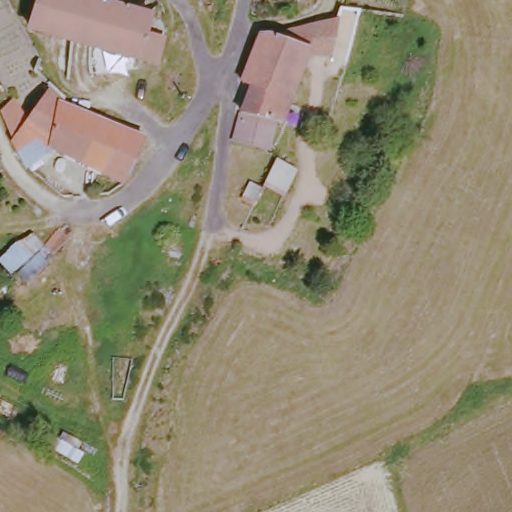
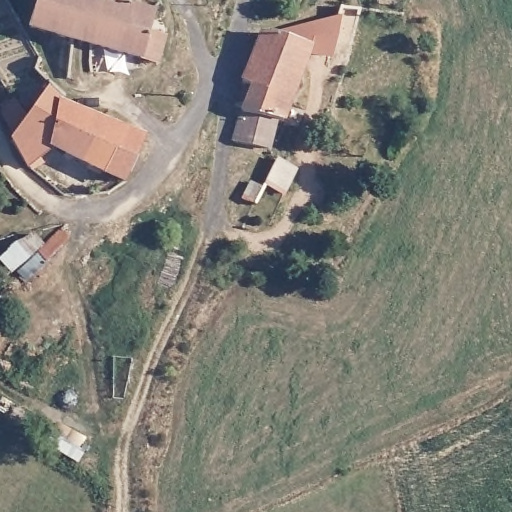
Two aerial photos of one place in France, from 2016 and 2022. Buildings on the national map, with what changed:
unchanged [(152,32),(165,37),(158,64),(150,62),(35,29),(41,0),(115,0),(157,11),(152,32)]
unchanged [(342,26),(334,63),(307,57),(269,45),(342,26)]
unchanged [(269,45),(307,57),(285,131),(277,129),(240,120),(250,92),(245,91),(262,44),(269,45)]
unchanged [(36,179),(16,150),(19,147),(4,122),(21,109),(35,132),(57,103),(99,120),(101,121),(143,137),(127,181),(54,155),(36,179)]
unchanged [(277,129),(271,158),(236,151),(240,120),(277,129)]
unchanged [(240,199),(248,184),(259,191),(275,164),(286,169),(293,175),(270,215),(252,206),(240,199)]
unchanged [(32,230),(45,244),(64,224),(70,233),(40,275),(24,283),(13,271),(0,264),(0,255),(32,230)]

